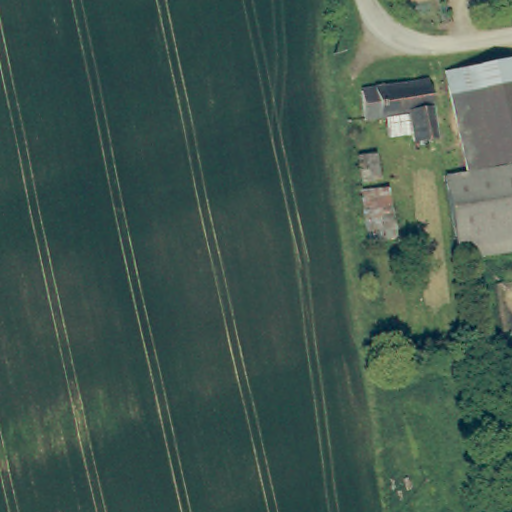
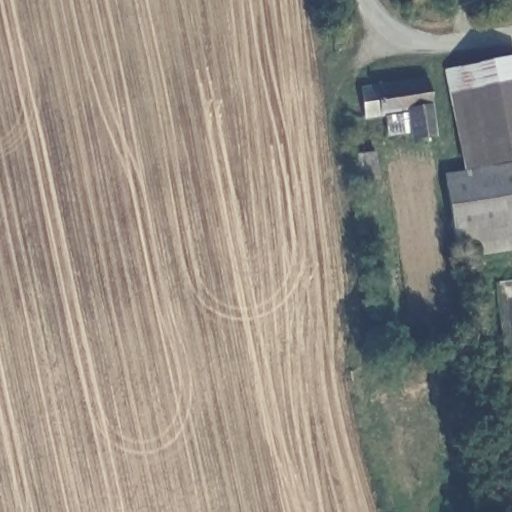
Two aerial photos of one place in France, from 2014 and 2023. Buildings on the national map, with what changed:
unchanged [(512,58),(512,156),(471,165),(451,70),(512,58)]
unchanged [(435,135),(415,138),(410,106),(368,112),(365,89),(426,80),(435,135)]
unchanged [(447,178),(512,164),(512,232),(457,242),(447,178)]

